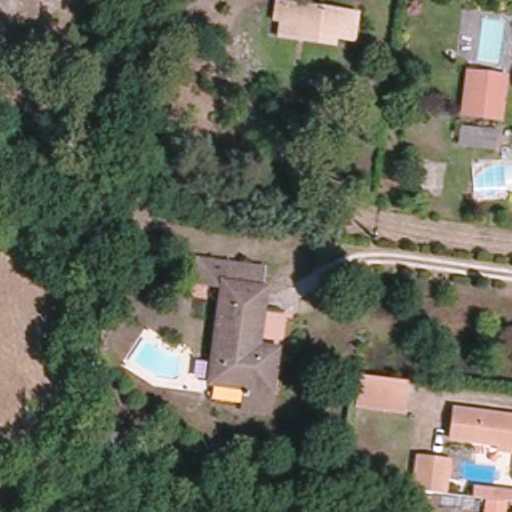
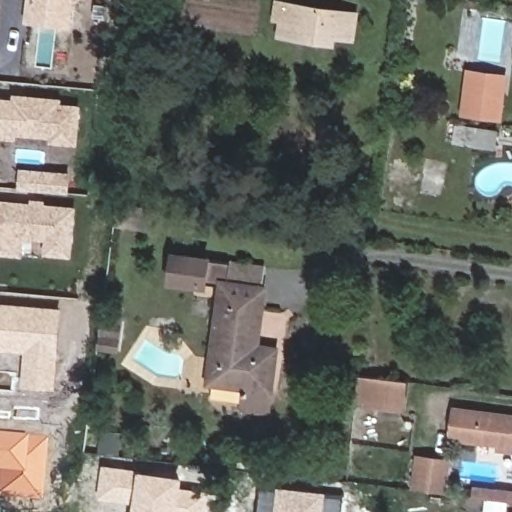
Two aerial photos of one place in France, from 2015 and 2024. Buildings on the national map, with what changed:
new [(76,0),(71,29),(25,23),(28,0),(76,0)]
unchanged [(357,14),(354,39),(299,31),(298,38),(280,35),(284,3),(357,14)]
new [(468,92),(469,83),(470,69),(508,74),(501,119),(463,114),(465,102),(466,92),(468,92)]
demolished [(466,92),(468,92),(469,83),(500,87),(497,106),(465,102),(466,92)]
new [(0,97),(13,98),(13,93),(56,98),(55,103),(80,105),(76,145),(50,143),(50,138),(17,135),(16,139),(0,138),(0,97)]
unchanged [(494,148),(461,143),(463,127),(496,131),(494,148)]
new [(0,198),(76,205),(71,257),(44,254),(46,239),(25,238),(23,256),(0,254),(0,198)]
unchanged [(115,224),(116,221),(119,203),(153,208),(150,229),(115,224)]
unchanged [(252,346),(271,349),(263,410),(240,407),(243,387),(206,381),(218,285),(190,281),(193,258),(226,262),(224,284),(259,289),(252,346)]
new [(56,389),(22,386),(25,352),(0,350),(0,302),(63,307),(56,389)]
new [(100,324),(101,312),(121,314),(115,355),(96,352),(98,340),(100,324)]
unchanged [(395,404),(355,398),(359,374),(398,379),(395,404)]
unchanged [(500,448),(500,444),(453,438),(456,414),(457,408),(480,410),(512,415),(512,450),(500,448)]
new [(45,436),(39,498),(0,495),(0,432),(24,434),(45,436)]
unchanged [(412,488),(416,457),(446,460),(442,492),(412,488)]
new [(132,503),(99,498),(104,463),(140,469),(184,476),(183,488),(208,491),(205,512),(131,512),(132,503)]
new [(263,488),(277,490),(279,485),(327,491),(327,494),(346,496),(344,512),(260,512),(263,488)]
unchanged [(473,495),(474,485),(497,488),(512,490),(512,495),(512,500),(506,499),(504,512),(484,512),(486,497),(473,495)]

